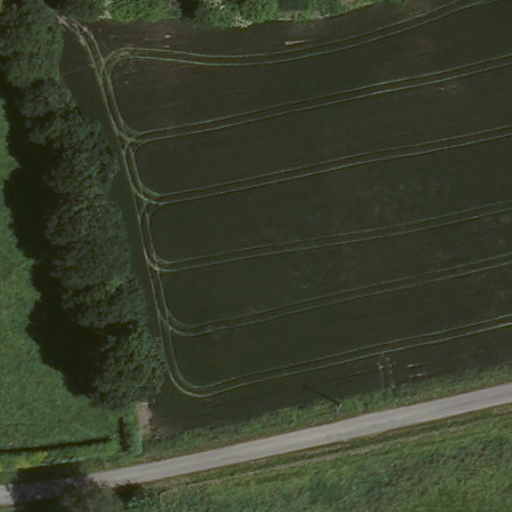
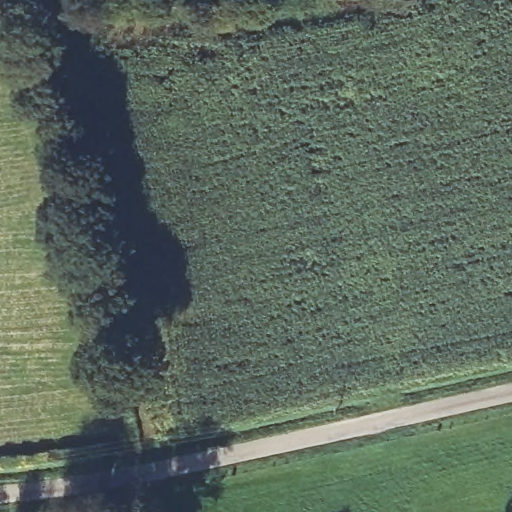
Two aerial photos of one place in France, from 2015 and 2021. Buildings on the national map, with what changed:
unchanged [(164,498),(167,512),(141,512),(140,505),(164,498)]

